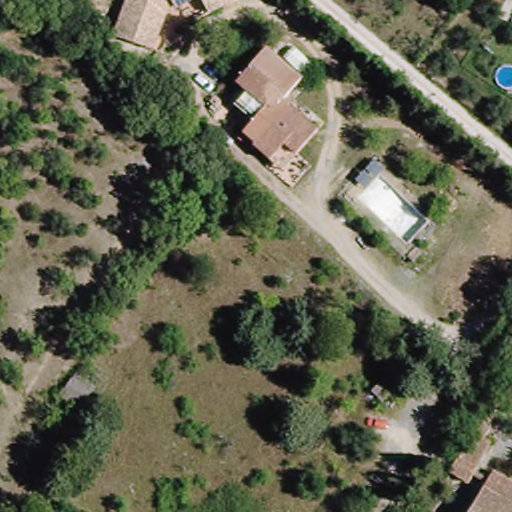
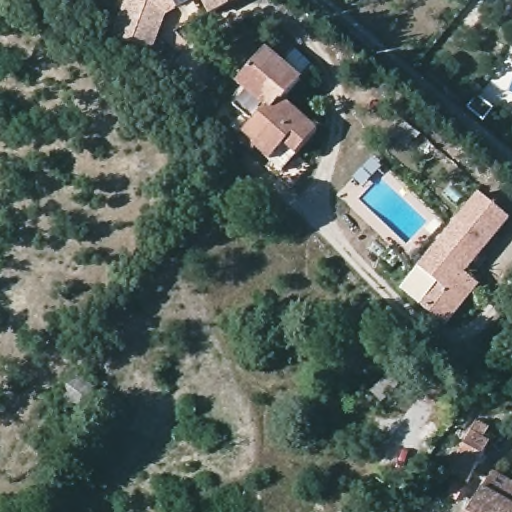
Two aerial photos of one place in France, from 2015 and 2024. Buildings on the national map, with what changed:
unchanged [(146,46),(111,34),(124,0),(182,0),(158,14),(146,46)]
unchanged [(200,0),(224,0),(205,10),(200,0)]
unchanged [(284,61),(293,51),(312,68),(302,79),(284,61)]
unchanged [(274,164),(260,151),(255,155),(238,139),(244,132),(254,121),(236,105),(250,89),(240,81),(266,52),(300,83),(288,100),(320,128),(299,155),(285,173),(274,164)]
new [(479,100),(496,114),(487,126),(470,112),(479,100)]
new [(420,306),(437,285),(417,270),(479,196),(510,221),(466,275),(479,286),(444,329),(420,306)]
unchanged [(434,466),(457,429),(493,452),(470,485),(434,466)]
unchanged [(487,479),(492,472),(512,483),(512,512),(467,512),(487,479)]

